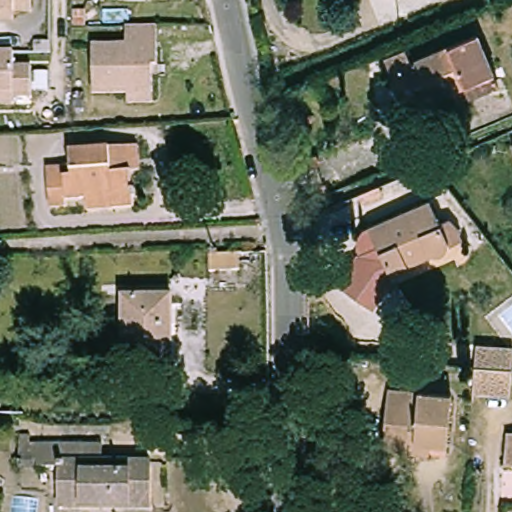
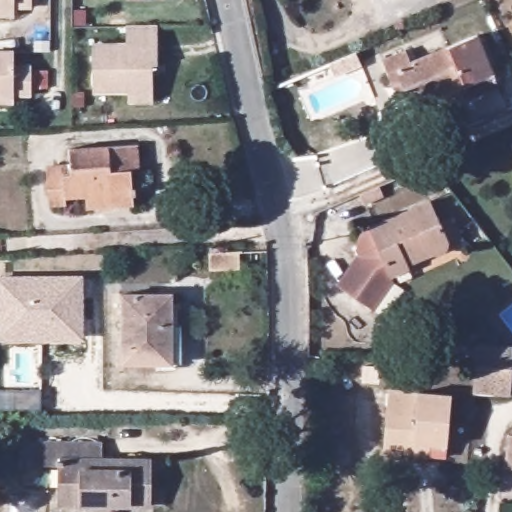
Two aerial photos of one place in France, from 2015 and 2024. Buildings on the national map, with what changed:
unchanged [(12,4),(12,1),(0,0),(30,0),(31,4),(12,4)]
unchanged [(126,101),(126,92),(94,92),(93,45),(126,44),(127,28),(158,28),(159,64),(159,75),(152,75),(153,92),(152,92),(152,101),(126,101)]
unchanged [(390,96),(378,69),(401,58),(407,70),(473,41),(489,79),(494,91),(467,104),(461,92),(409,116),(403,103),(394,107),(390,96)]
unchanged [(18,69),(36,70),(36,98),(18,98),(18,95),(0,95),(0,59),(18,59),(18,69)]
unchanged [(102,195),(74,196),(74,202),(55,203),(53,165),(77,164),(76,149),(147,145),(155,145),(156,169),(148,170),(149,205),(128,206),(103,207),(102,195)]
unchanged [(355,254),(359,252),(358,249),(358,244),(358,237),(361,232),(365,227),(369,225),(428,197),(438,220),(447,216),(458,227),(458,237),(445,242),(442,246),(440,248),(435,250),(430,250),(405,262),(407,266),(390,273),(392,278),(370,307),(336,282),(355,254)]
unchanged [(206,250),(233,252),(232,267),(205,267),(206,250)]
new [(0,276),(82,276),(83,340),(0,341),(0,276)]
unchanged [(164,362),(126,362),(126,292),(171,292),(171,325),(171,362),(164,362)]
unchanged [(477,347),(512,349),(512,395),(475,392),(477,367),(477,347)]
unchanged [(390,448),(392,441),(396,385),(459,390),(454,442),(438,440),(437,452),(390,448)]
new [(0,408),(0,391),(41,391),(41,408),(0,408)]
unchanged [(100,466),(155,467),(155,508),(59,508),(59,471),(41,470),(41,472),(24,472),(25,451),(41,451),(100,450),(100,466)]

